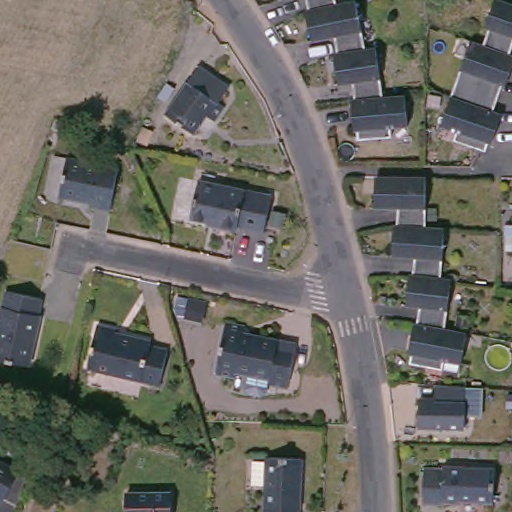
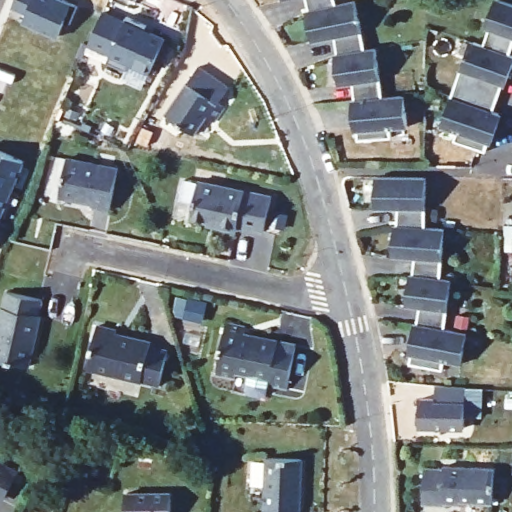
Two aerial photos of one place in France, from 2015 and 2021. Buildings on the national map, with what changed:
new [(18,0),(59,0),(80,9),(72,27),(67,25),(60,40),(25,25),(29,16),(14,10),(18,0)]
unchanged [(340,52),(338,39),(317,42),(311,11),(314,11),(311,0),(339,0),(341,5),(359,2),(368,51),(379,50),(385,84),(369,78),(356,69),(339,57),(340,52)]
unchanged [(473,44),(487,49),(494,32),(489,31),(501,2),(512,7),(512,53),(510,58),(512,59),(512,72),(505,90),(503,89),(491,116),(499,120),(497,126),(486,121),(448,106),(473,44)]
new [(105,15),(127,24),(129,20),(149,28),(147,33),(167,41),(153,75),(132,65),(128,74),(109,65),(112,57),(91,47),(105,15)]
unchanged [(356,69),(369,78),(385,84),(387,99),(408,97),(410,129),(393,130),(393,141),(362,142),(362,132),(356,132),(354,101),(357,100),(355,83),(342,84),(339,57),(356,69)]
unchanged [(222,107),(227,110),(214,126),(207,121),(195,137),(167,116),(202,71),(233,93),(222,107)]
unchanged [(486,121),(497,126),(487,147),(484,146),(480,154),(451,142),(454,135),(439,128),(448,106),(486,121)]
new [(1,230),(0,229),(0,149),(30,162),(1,230)]
unchanged [(118,172),(109,213),(91,210),(92,205),(59,199),(68,161),(118,172)]
unchanged [(444,228),(441,277),(451,280),(444,332),(464,337),(459,366),(444,362),(442,373),(410,367),(413,357),(406,356),(413,327),(417,327),(419,307),(406,306),(409,273),(414,274),(414,257),(392,256),(394,224),(398,224),(398,210),(374,209),(376,189),(376,175),(425,177),(425,182),(424,227),(444,228)]
unchanged [(273,199),(264,233),(238,227),(238,232),(218,228),(219,224),(191,219),(199,182),(273,199)]
unchanged [(40,318),(27,368),(0,361),(0,317),(7,292),(41,301),(37,317),(40,318)]
unchanged [(114,332),(113,337),(147,346),(147,349),(164,353),(156,387),(85,370),(95,328),(114,332)]
unchanged [(297,350),(288,393),(268,390),(269,382),(236,376),(234,382),(213,378),(223,328),(245,332),(244,338),(297,350)]
unchanged [(464,393),(481,395),(480,422),(464,421),(463,432),(434,432),(434,406),(418,405),(419,389),(435,391),(464,393)]
unchanged [(301,512),(266,512),(267,485),(251,484),(252,460),(269,461),(269,455),(304,457),(301,512)]
unchanged [(1,498),(0,498),(0,464),(14,472),(1,498)]
unchanged [(496,468),(494,502),(464,501),(463,505),(446,504),(446,506),(425,505),(426,468),(442,469),(443,465),(496,468)]
unchanged [(124,512),(124,498),(168,498),(168,512),(124,512)]

